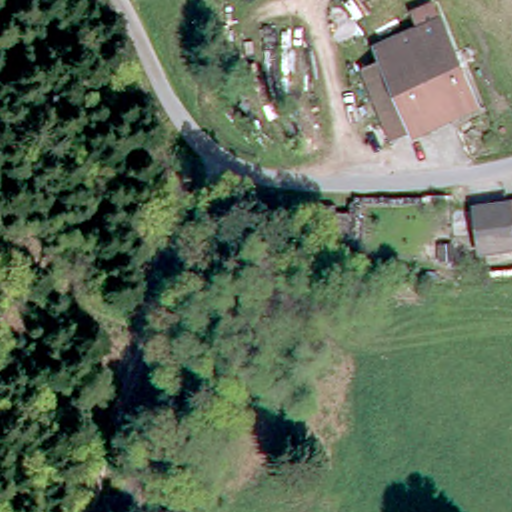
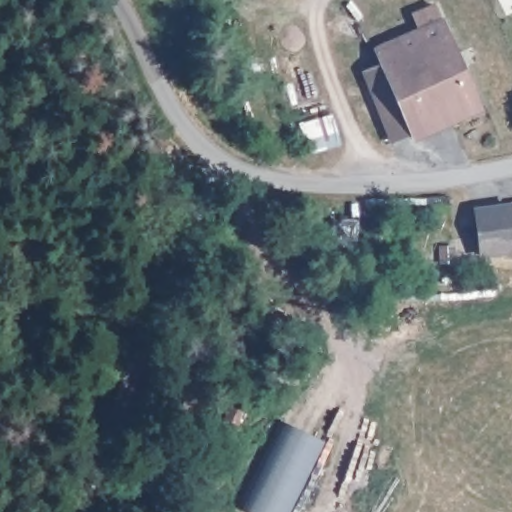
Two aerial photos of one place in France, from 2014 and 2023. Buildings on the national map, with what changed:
unchanged [(408,139),(390,147),(358,78),(376,70),(371,59),(440,30),(460,75),(470,71),(478,88),(468,93),(480,118),(411,146),(408,139)]
unchanged [(500,257),(479,259),(472,207),(512,201),(512,210),(497,212),(500,257)]
unchanged [(497,212),(512,210),(512,255),(500,257),(497,212)]
new [(249,512),(239,507),(282,421),(324,442),(290,512),(249,512)]

